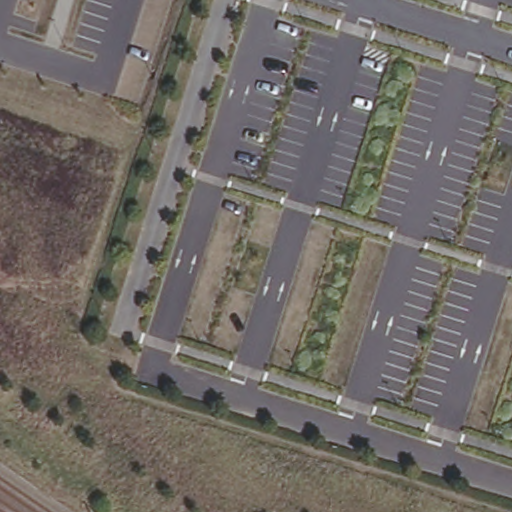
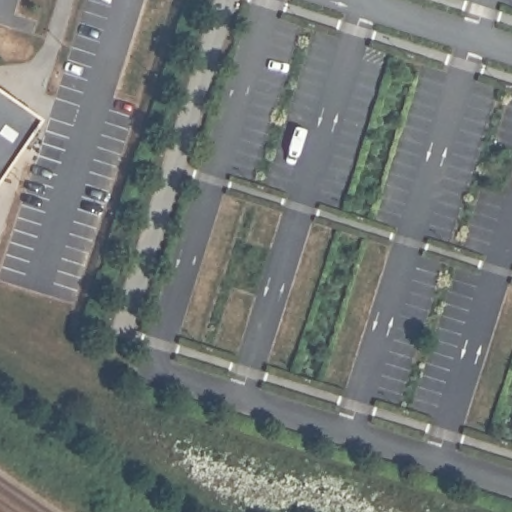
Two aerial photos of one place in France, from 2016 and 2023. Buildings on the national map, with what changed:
new [(31,118),(0,166),(0,95),(31,118)]

